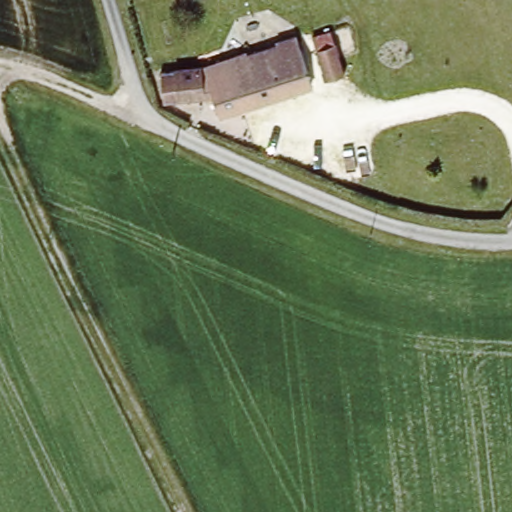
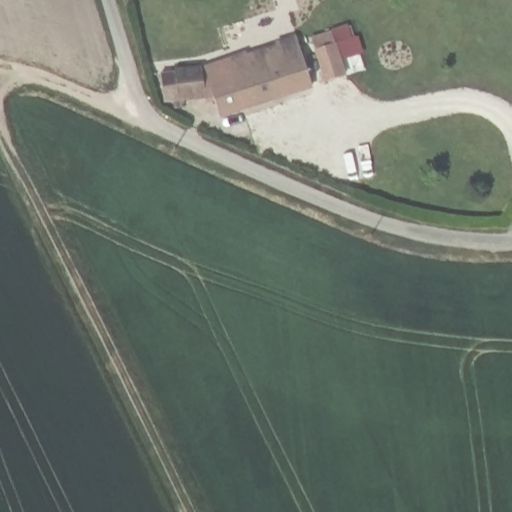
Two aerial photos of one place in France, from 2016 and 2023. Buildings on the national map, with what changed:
unchanged [(305,39),(330,30),(349,77),(324,86),(305,39)]
unchanged [(207,84),(232,77),(227,59),(297,36),(312,85),(220,118),(207,84)]
unchanged [(155,72),(201,65),(205,99),(162,104),(155,72)]

